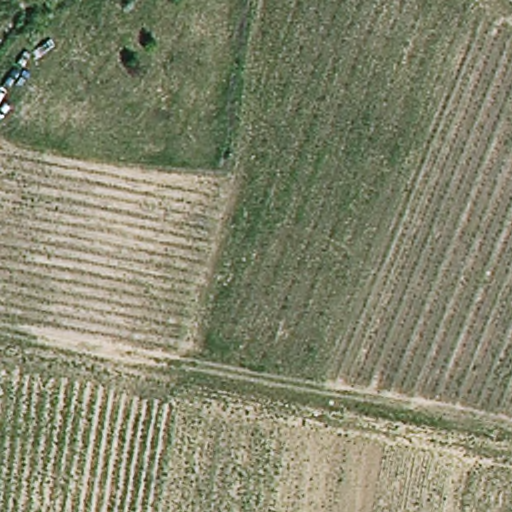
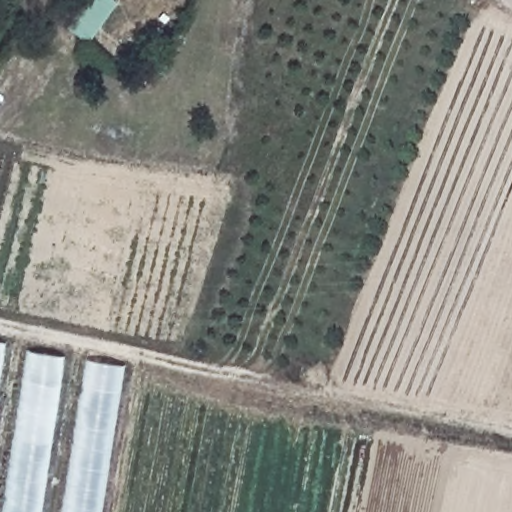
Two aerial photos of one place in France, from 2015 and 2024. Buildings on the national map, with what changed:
new [(65,27),(84,0),(115,0),(84,40),(65,27)]
new [(5,342),(0,373),(0,341),(5,342)]
new [(26,351),(63,357),(38,512),(1,512),(26,351)]
new [(84,360),(122,366),(99,512),(60,512),(84,360)]

